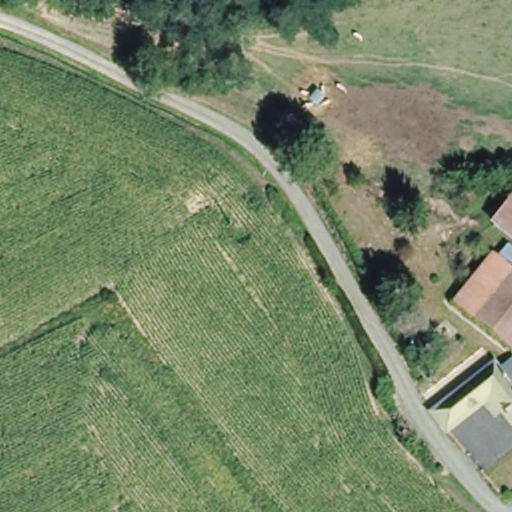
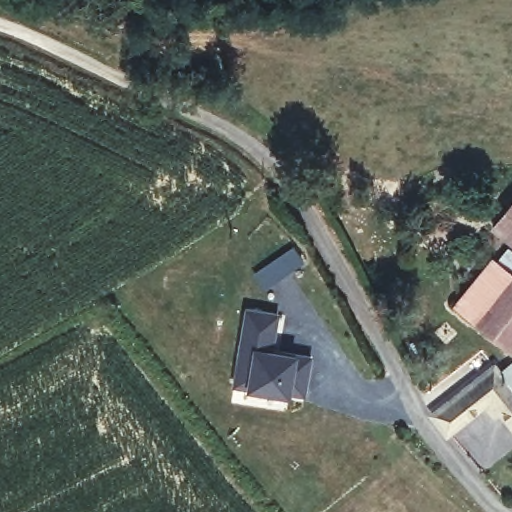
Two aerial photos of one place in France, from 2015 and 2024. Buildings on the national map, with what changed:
unchanged [(497,222),(512,203),(512,232),(497,222)]
new [(293,244),(304,260),(262,290),(251,273),(293,244)]
unchanged [(458,301),(494,253),(500,258),(511,244),(512,244),(512,278),(480,319),(465,307),(458,301)]
unchanged [(512,278),(512,346),(480,319),(512,278)]
new [(245,305),(280,313),(274,346),(312,355),(305,394),(263,391),(231,383),(245,305)]
unchanged [(500,359),(508,369),(512,366),(512,423),(509,419),(503,422),(500,413),(493,414),(483,403),(446,429),(431,409),(500,359)]

